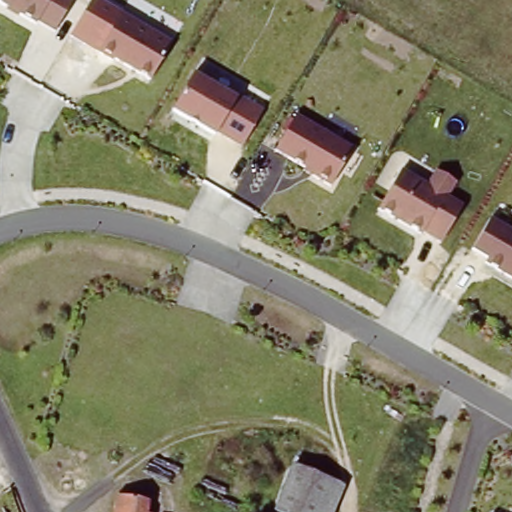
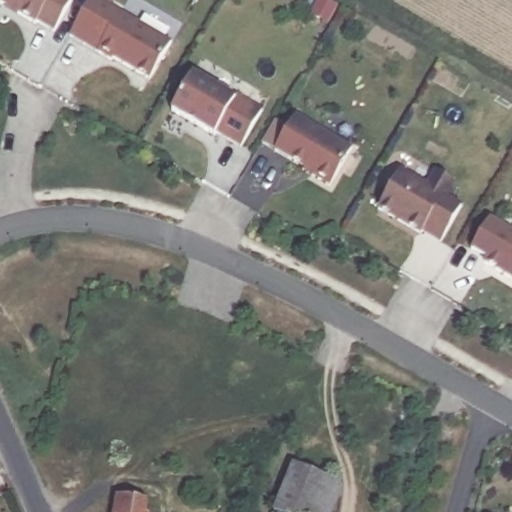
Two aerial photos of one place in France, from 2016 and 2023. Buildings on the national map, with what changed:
unchanged [(55,33),(0,2),(0,0),(72,0),(55,33)]
unchanged [(168,40),(147,78),(95,47),(117,7),(168,40)]
unchanged [(263,111),(242,144),(220,130),(213,138),(171,110),(194,71),(263,111)]
unchanged [(355,143),(331,182),(272,148),(294,109),(355,143)]
unchanged [(427,182),(437,166),(455,178),(447,194),(463,202),(440,245),(377,209),(398,166),(427,182)]
unchanged [(512,285),(467,256),(491,213),(512,226),(512,285)]
unchanged [(284,512),(273,502),(291,455),(340,481),(324,512),(284,512)]
unchanged [(150,511),(149,512),(113,512),(115,495),(122,496),(125,476),(147,481),(143,510),(150,511)]

